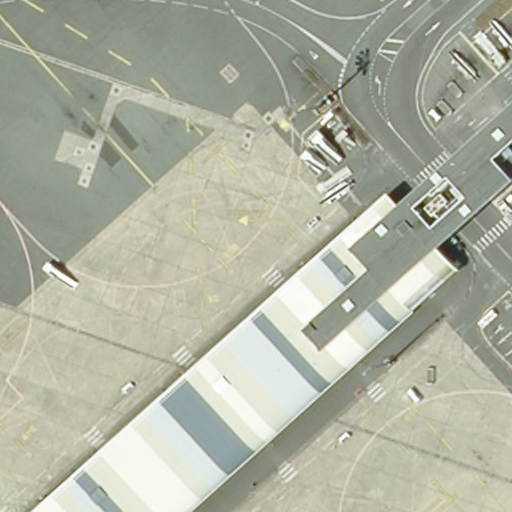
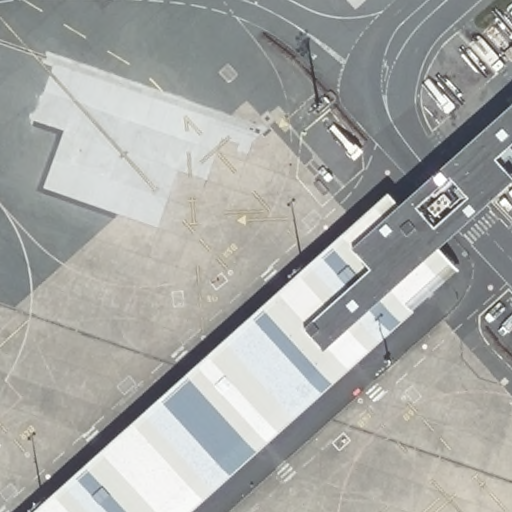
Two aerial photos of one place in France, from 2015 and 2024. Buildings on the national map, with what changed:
unchanged [(494,158),(512,176),(512,181),(440,246),(458,268),(191,512),(33,512),(389,192),(396,201),(512,99),(512,141),(494,158)]

